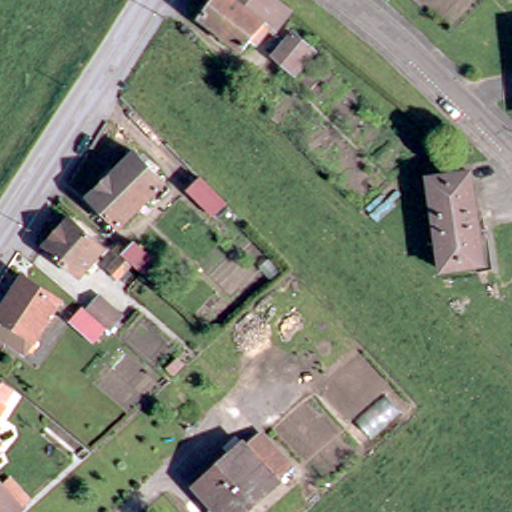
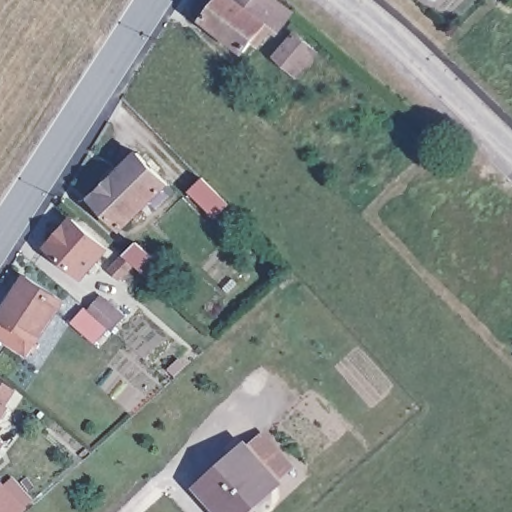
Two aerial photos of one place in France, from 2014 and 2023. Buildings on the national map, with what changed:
unchanged [(272,30),(260,45),(255,41),(243,52),(205,21),(222,0),(273,0),(295,17),(278,36),(272,30)]
unchanged [(300,39),(311,50),(293,71),(281,61),(300,39)]
unchanged [(144,209),(124,227),(93,197),(139,152),(169,183),(149,204),(154,208),(149,213),(144,209)]
demolished [(475,174),(480,211),(483,211),(485,225),(482,225),(487,265),(444,270),(433,179),(475,174)]
unchanged [(217,217),(190,191),(203,177),(230,205),(217,217)]
unchanged [(91,268),(84,277),(50,247),(75,219),(108,249),(97,262),(101,266),(96,272),(91,268)]
unchanged [(136,242),(165,267),(153,280),(125,256),(136,242)]
unchanged [(123,257),(133,265),(120,278),(111,270),(123,257)]
unchanged [(0,314),(27,276),(65,302),(31,352),(0,330),(0,314)]
unchanged [(76,314),(85,305),(90,311),(104,296),(126,316),(112,330),(96,316),(88,324),(76,314)]
unchanged [(0,417),(0,403),(6,407),(0,417)]
unchanged [(211,492),(256,451),(287,485),(258,512),(230,512),(211,492)]
unchanged [(21,512),(0,512),(0,496),(3,492),(21,512)]

